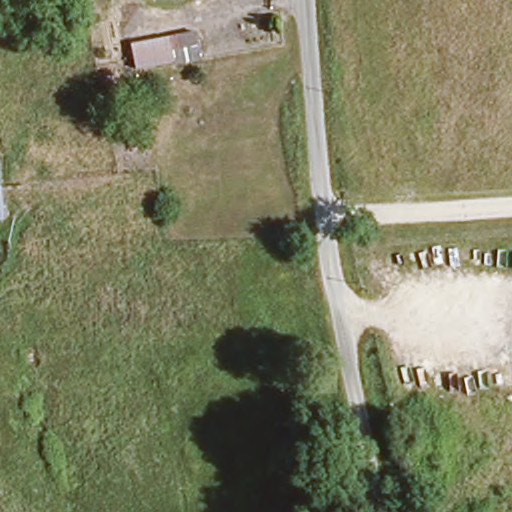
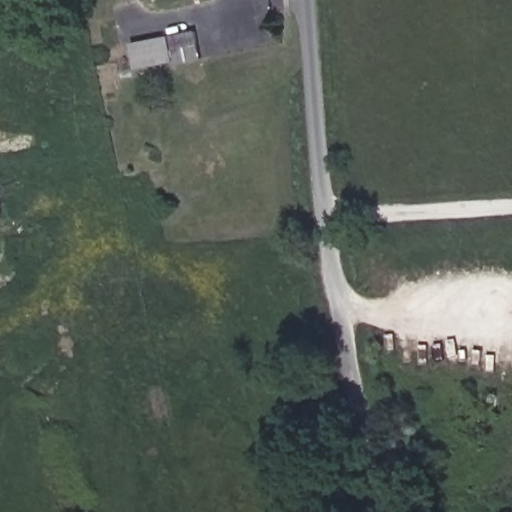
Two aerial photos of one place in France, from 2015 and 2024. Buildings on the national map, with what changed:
unchanged [(164,40),(191,27),(202,51),(176,65),(171,55),(164,40)]
unchanged [(0,211),(0,188),(3,210),(0,211)]

